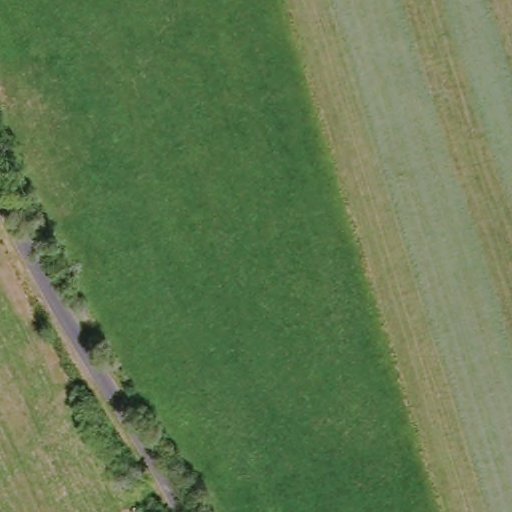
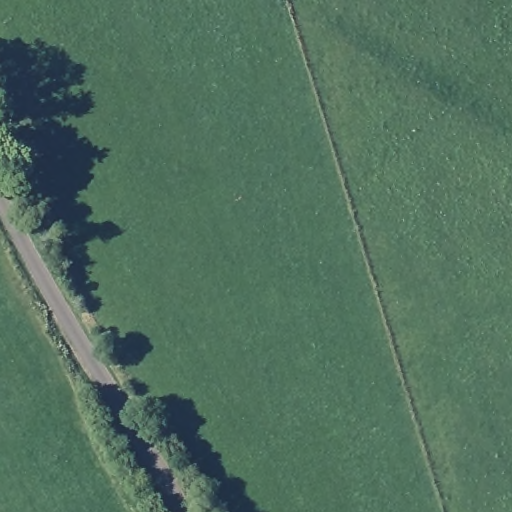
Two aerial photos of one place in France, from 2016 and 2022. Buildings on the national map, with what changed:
[]

